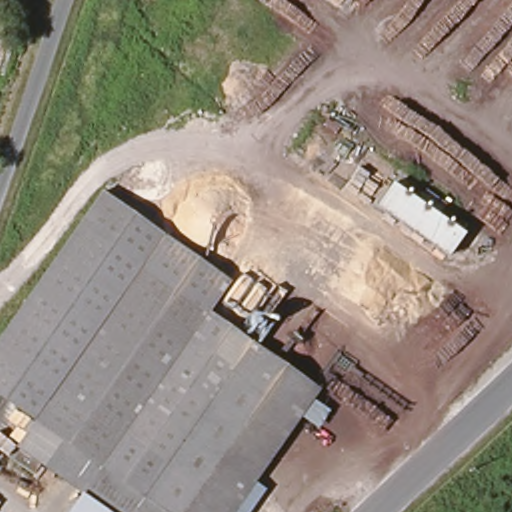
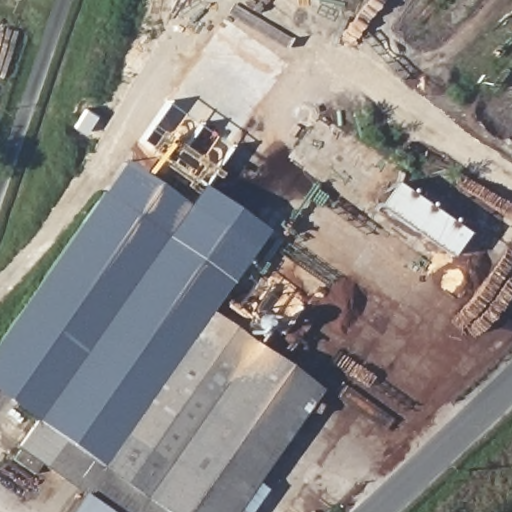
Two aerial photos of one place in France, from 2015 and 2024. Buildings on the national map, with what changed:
new [(100,191),(122,160),(186,205),(200,185),(265,230),(231,281),(100,191)]
unchanged [(383,204),(401,186),(470,232),(451,258),(383,204)]
unchanged [(320,389),(314,400),(330,412),(317,429),(301,417),(255,482),(265,489),(250,512),(69,512),(81,493),(16,446),(33,420),(0,397),(0,336),(100,191),(231,281),(210,312),(320,389)]

